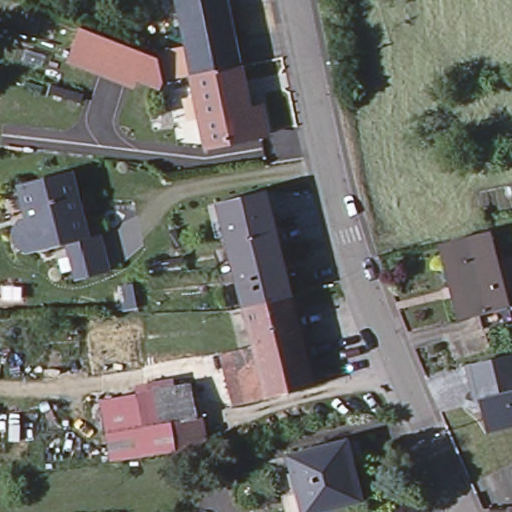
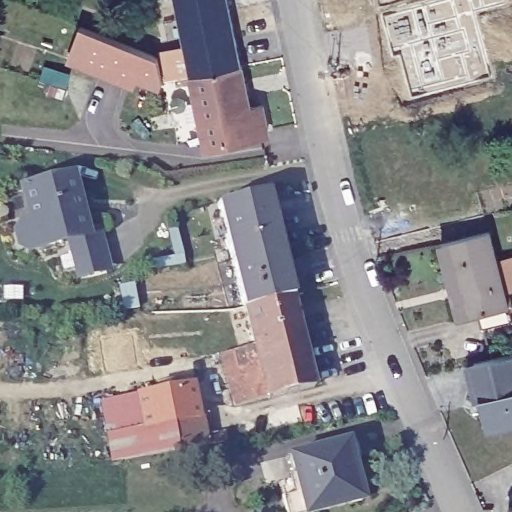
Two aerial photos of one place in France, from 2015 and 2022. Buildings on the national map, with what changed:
unchanged [(193,73),(166,79),(160,51),(187,46),(178,0),(227,0),(235,40),(240,63),(250,108),(202,118),(193,73)]
new [(503,0),(504,4),(472,11),(489,77),(412,98),(400,56),(392,59),(382,16),(445,0),(503,0)]
unchanged [(164,79),(159,83),(135,73),(132,81),(69,56),(81,26),(159,58),(164,79)]
unchanged [(202,118),(250,108),(262,106),(267,131),(207,144),(202,118)]
unchanged [(70,170),(86,228),(69,233),(67,233),(29,244),(19,240),(17,234),(14,224),(20,216),(29,214),(21,183),(70,170)]
unchanged [(215,201),(264,189),(277,246),(230,258),(215,201)]
unchanged [(97,225),(100,233),(107,261),(81,268),(79,269),(69,233),(86,228),(97,225)]
unchanged [(485,230),(507,316),(507,320),(485,325),(479,327),(475,312),(455,317),(437,242),(485,230)]
unchanged [(230,258),(277,246),(290,294),(242,305),(230,258)]
unchanged [(250,343),(242,305),(290,294),(301,338),(253,350),(250,343)]
unchanged [(301,338),(312,384),(264,396),(253,350),(301,338)]
unchanged [(253,350),(264,396),(265,397),(230,406),(216,352),(250,343),(253,350)]
unchanged [(480,396),(475,398),(467,363),(512,352),(512,423),(487,429),(480,396)]
unchanged [(107,399),(189,384),(195,414),(199,414),(204,442),(118,458),(107,399)]
unchanged [(363,498),(313,512),(305,512),(303,512),(287,512),(282,495),(299,491),(289,454),(345,439),(363,498)]
unchanged [(512,512),(507,512),(507,506),(512,505),(512,512)]

